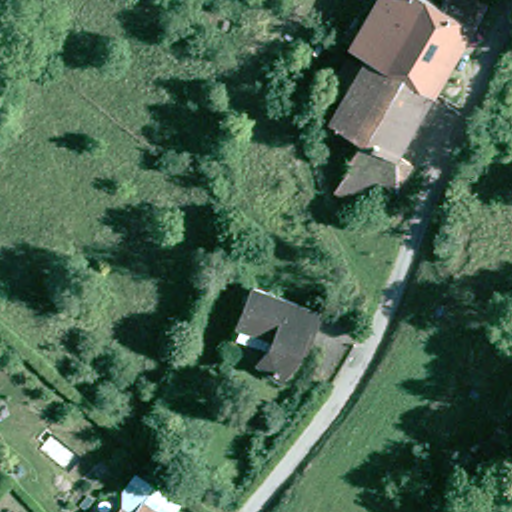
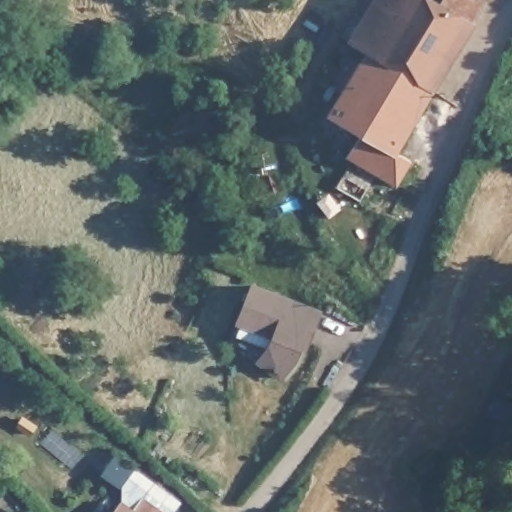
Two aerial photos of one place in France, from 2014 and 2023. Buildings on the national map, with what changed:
unchanged [(485,0),(473,18),(430,87),(397,67),(362,46),(345,35),(367,0),(485,0)]
unchanged [(350,152),(344,148),(343,147),(356,127),(325,109),(362,46),(397,67),(430,87),(393,145),(408,155),(394,178),(375,167),(359,192),(357,196),(332,180),(334,176),(350,152)]
unchanged [(295,343),(290,353),(286,363),(281,372),(279,375),(255,358),(265,342),(269,332),(233,319),(247,283),(315,310),(308,327),(300,346),(295,343)]
unchanged [(112,497),(134,473),(172,508),(169,512),(137,512),(132,507),(129,512),(112,512),(112,497)]
unchanged [(132,507),(137,512),(129,512),(132,507)]

